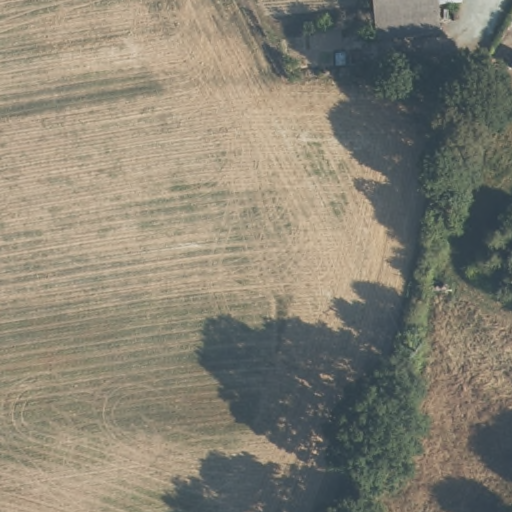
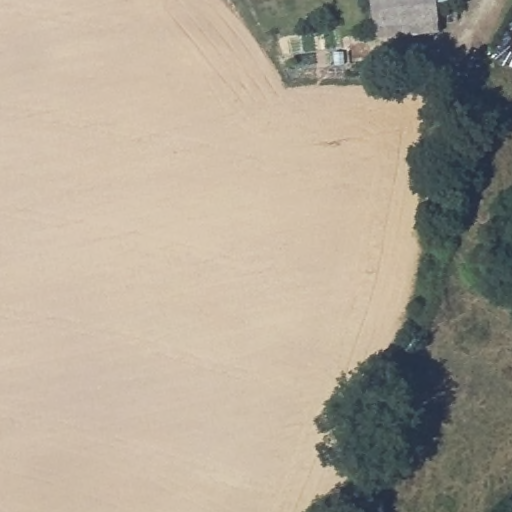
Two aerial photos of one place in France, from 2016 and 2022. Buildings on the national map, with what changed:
unchanged [(373,0),(465,0),(465,2),(438,3),(439,33),(378,38),(373,0)]

